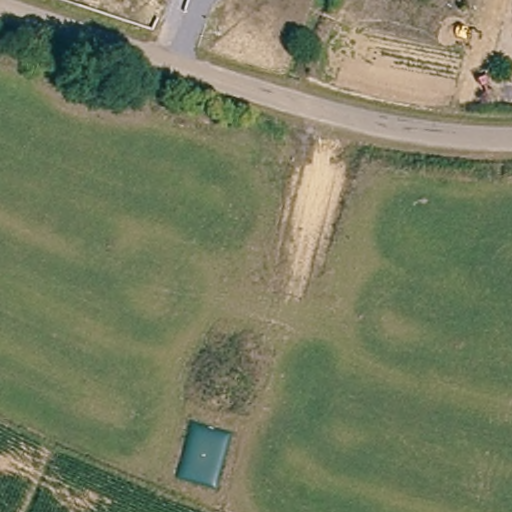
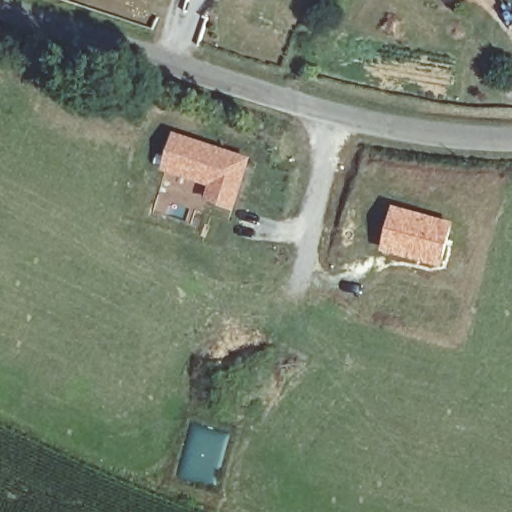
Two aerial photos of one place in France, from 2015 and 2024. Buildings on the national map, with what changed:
new [(174,131),(252,158),(234,210),(203,199),(207,186),(161,168),(174,131)]
new [(392,205),(453,221),(441,268),(380,253),(392,205)]

